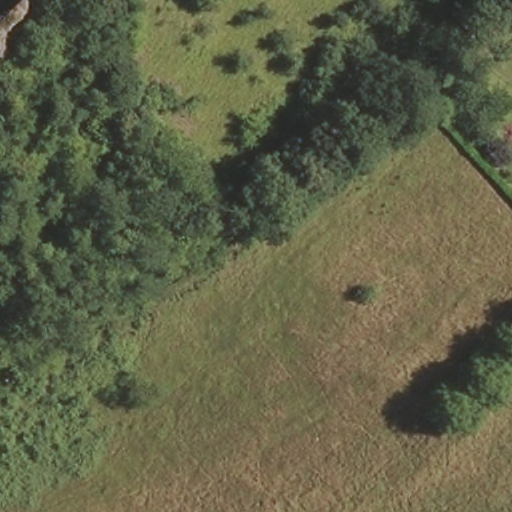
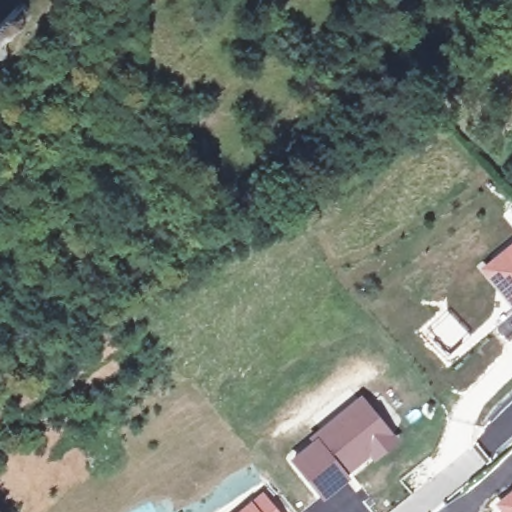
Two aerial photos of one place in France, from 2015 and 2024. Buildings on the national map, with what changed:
unchanged [(25,25),(0,42),(0,18),(13,9),(25,25)]
new [(512,242),(512,308),(480,269),(512,242)]
new [(303,447),(299,442),(360,395),(397,440),(372,459),(368,454),(345,473),(350,477),(321,499),(290,459),(303,447)]
new [(279,512),(235,512),(261,490),(279,512)]
new [(512,490),(512,512),(501,512),(495,504),(512,490)]

